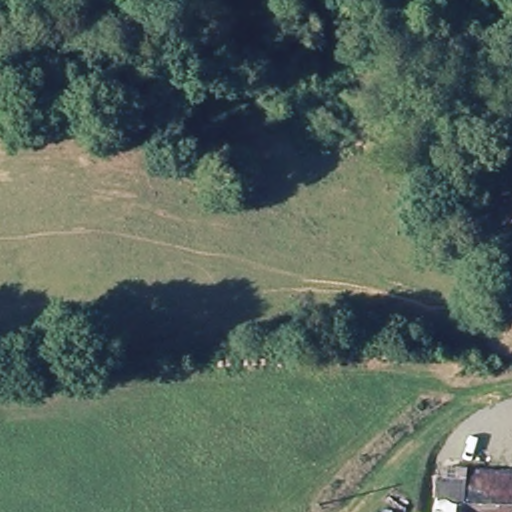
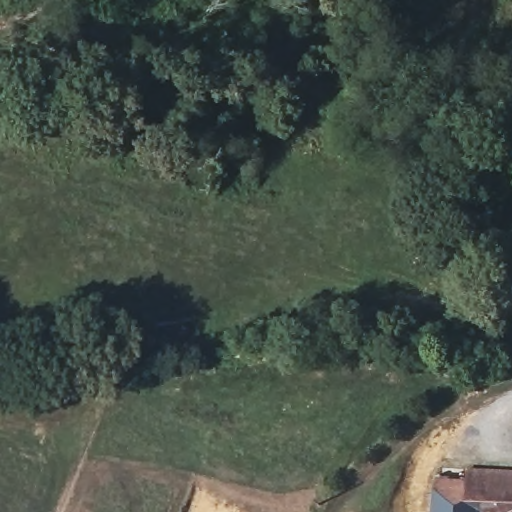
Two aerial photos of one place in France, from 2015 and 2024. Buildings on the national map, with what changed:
unchanged [(438,512),(442,468),(512,469),(512,512),(438,512)]

